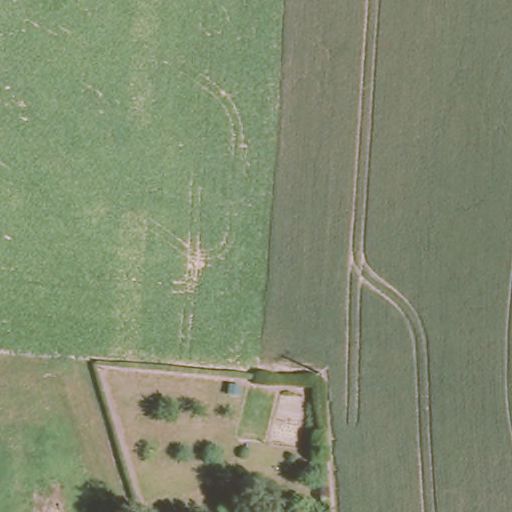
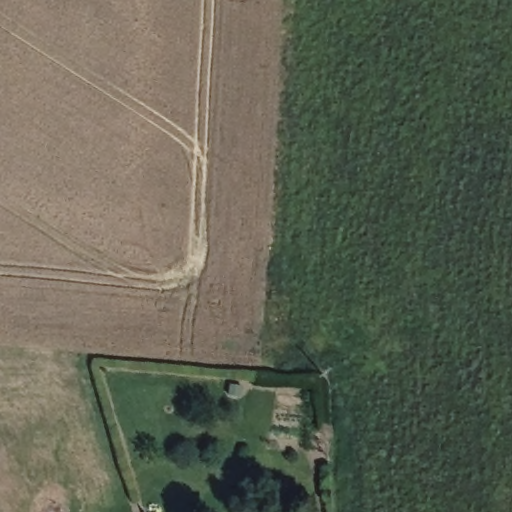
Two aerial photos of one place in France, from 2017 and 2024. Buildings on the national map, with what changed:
[]

